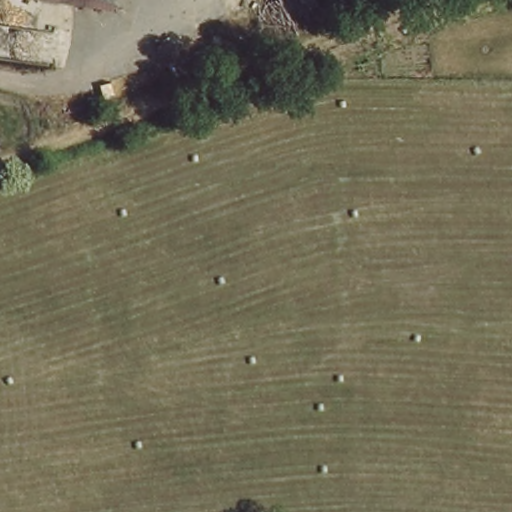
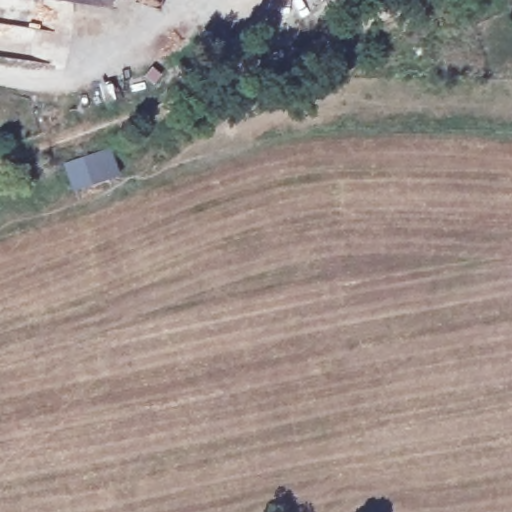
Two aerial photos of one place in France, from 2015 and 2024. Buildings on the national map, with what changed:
unchanged [(102,12),(31,0),(103,0),(102,12)]
new [(72,191),(62,163),(110,147),(120,175),(72,191)]

